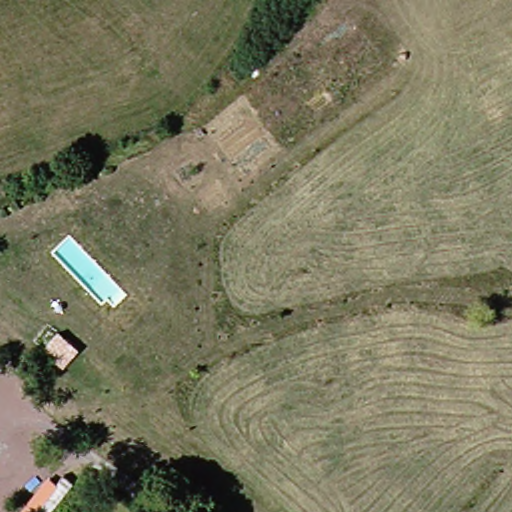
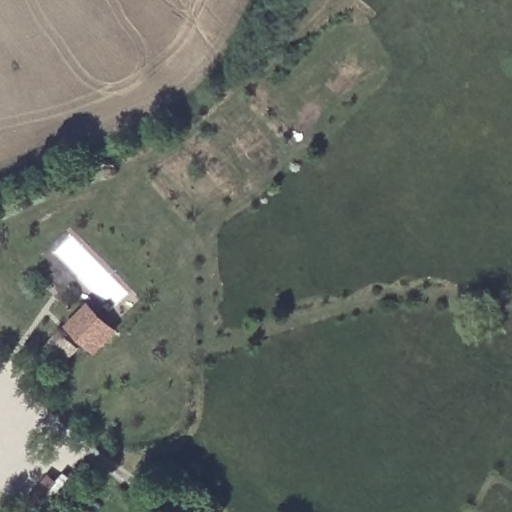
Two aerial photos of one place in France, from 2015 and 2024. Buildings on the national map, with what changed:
new [(90,301),(120,330),(96,355),(66,325),(90,301)]

